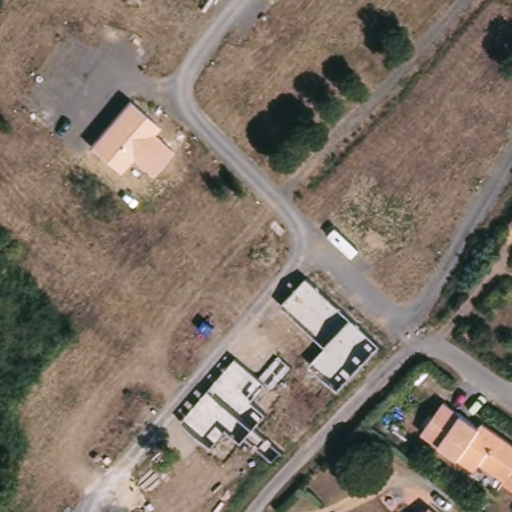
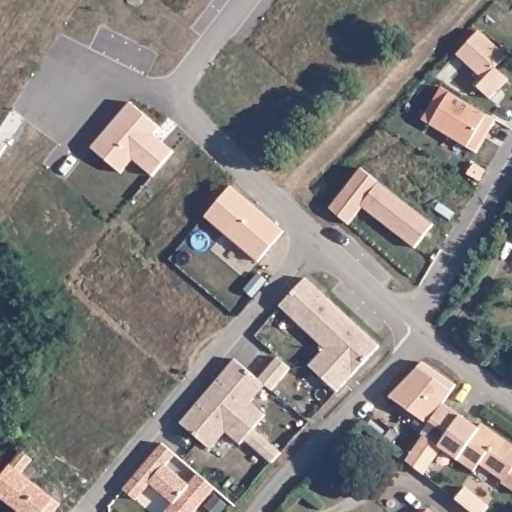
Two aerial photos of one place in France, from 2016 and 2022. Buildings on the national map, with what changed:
new [(479,30),(506,55),(495,67),(508,79),(490,99),(477,86),(484,79),(457,54),(479,30)]
new [(443,86),(496,119),(477,152),(423,119),(443,86)]
unchanged [(152,176),(133,160),(121,174),(90,149),(131,101),(161,129),(154,135),(174,150),(152,176)]
new [(0,155),(0,141),(6,145),(0,155)]
new [(362,167),(434,224),(415,248),(364,206),(349,224),(331,207),(362,167)]
new [(285,230),(259,260),(206,215),(232,185),(285,230)]
unchanged [(336,391),(309,365),(325,347),(281,305),(305,277),(380,345),(336,391)]
unchanged [(255,427),(282,450),(273,460),(245,437),(241,442),(226,430),(212,446),(181,420),(236,356),(258,375),(279,352),(292,364),(273,387),(265,381),(250,400),(266,413),(255,427)]
new [(443,401),(427,424),(390,399),(421,362),(454,385),(443,401)]
unchanged [(457,458),(419,432),(443,401),(479,426),(457,458)]
unchanged [(512,443),(512,488),(502,481),(504,479),(479,463),(474,470),(457,458),(481,422),(512,443)]
new [(215,487),(194,512),(165,512),(174,502),(151,482),(147,486),(136,500),(124,488),(135,475),(163,443),(215,487)]
new [(33,459),(21,472),(60,505),(54,512),(19,512),(0,495),(0,479),(22,448),(33,459)]
unchanged [(424,512),(427,508),(432,512),(424,512)]

